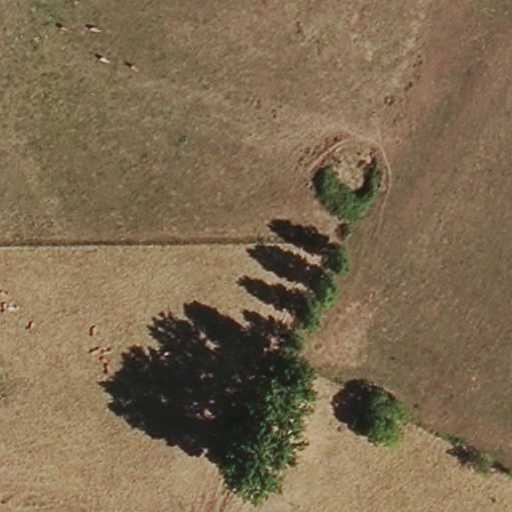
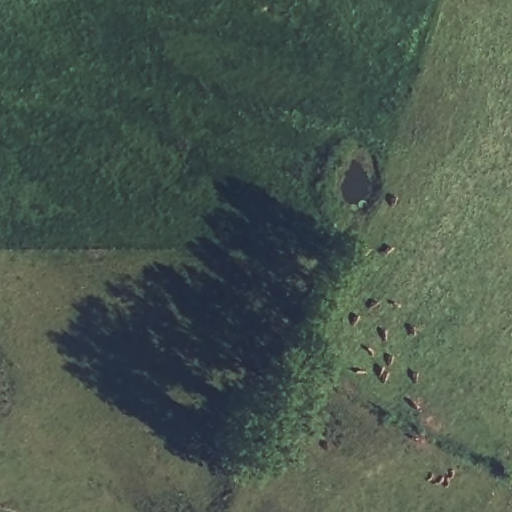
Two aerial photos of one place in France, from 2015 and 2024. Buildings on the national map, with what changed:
[]

